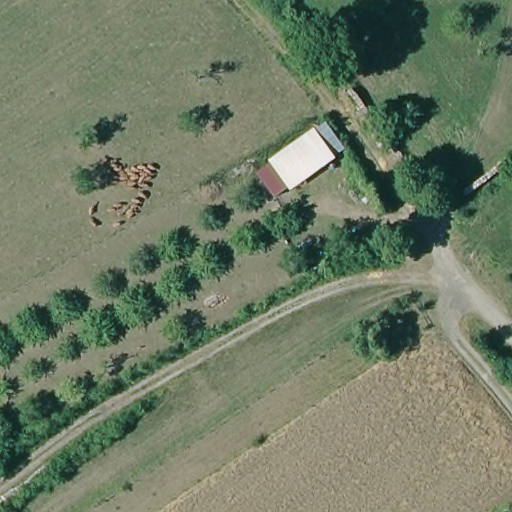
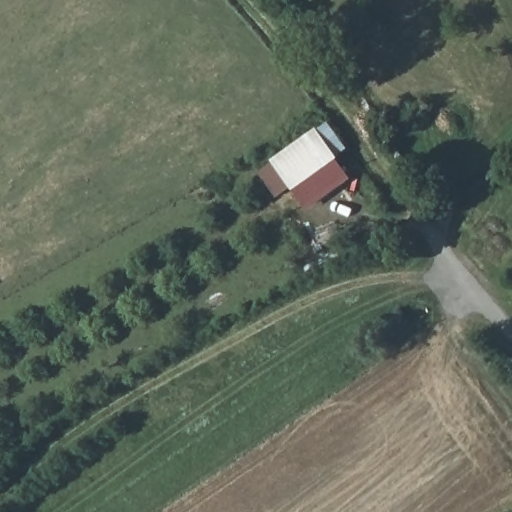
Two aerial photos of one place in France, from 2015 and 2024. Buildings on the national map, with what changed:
unchanged [(337,162),(290,195),(269,162),(312,132),(337,162)]

